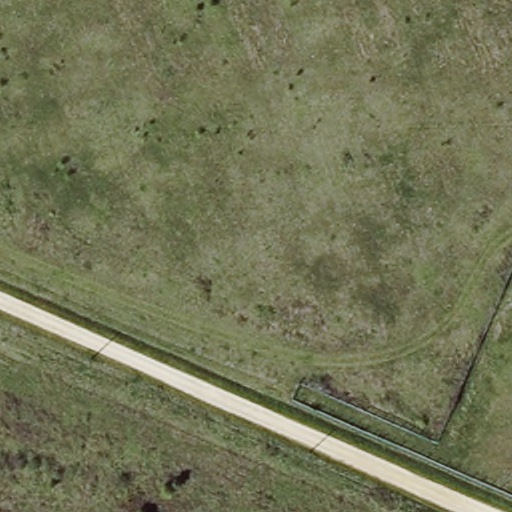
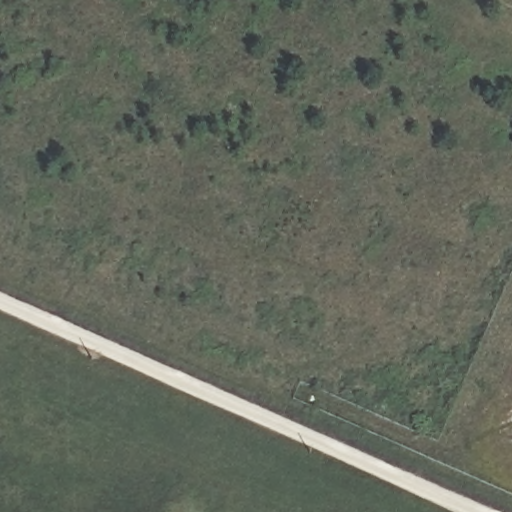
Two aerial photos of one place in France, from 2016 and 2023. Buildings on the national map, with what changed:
[]

